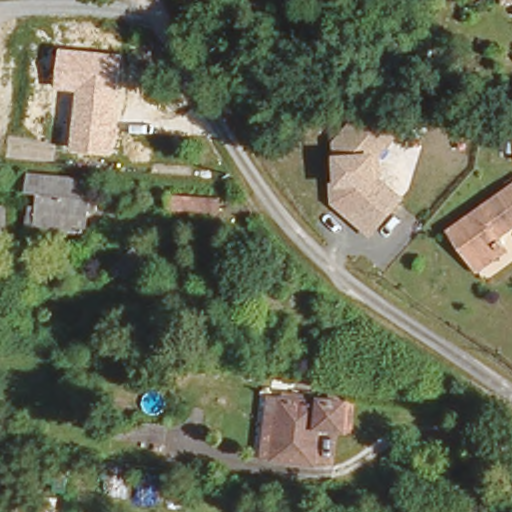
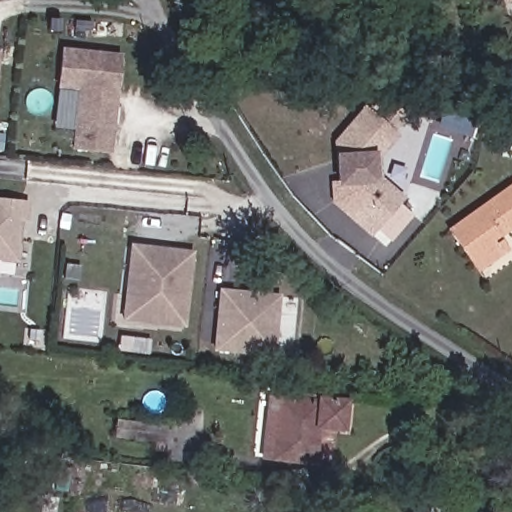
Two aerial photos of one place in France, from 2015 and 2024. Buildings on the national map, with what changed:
unchanged [(121,53),(112,155),(71,151),(77,91),(56,89),(60,47),(121,53)]
unchanged [(370,236),(332,203),(332,182),(337,182),(336,137),(365,108),(400,137),(387,151),(388,181),(405,198),(370,236)]
demolished [(90,185),(100,191),(98,204),(89,203),(86,223),(37,218),(39,208),(28,207),(30,195),(37,196),(39,184),(27,184),(28,166),(91,172),(90,185)]
unchanged [(512,174),(512,217),(494,230),(505,241),(471,261),(445,220),(512,174)]
demolished [(225,195),(224,209),(174,208),(174,194),(225,195)]
new [(0,198),(27,201),(25,220),(22,220),(17,263),(0,261),(0,198)]
new [(121,320),(130,243),(193,250),(185,327),(121,320)]
demolished [(121,279),(115,273),(126,263),(137,251),(148,262),(145,265),(132,278),(127,273),(121,279)]
new [(212,350),(218,288),(281,295),(275,356),(212,350)]
unchanged [(335,426),(307,424),(305,454),(265,450),(272,391),(338,397),(335,426)]
unchanged [(177,421),(174,438),(126,432),(129,415),(177,421)]

